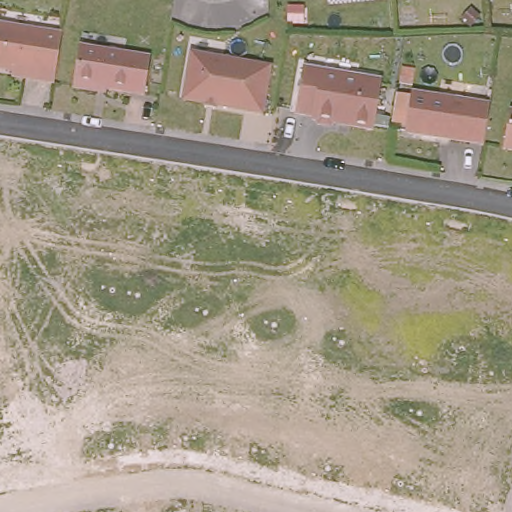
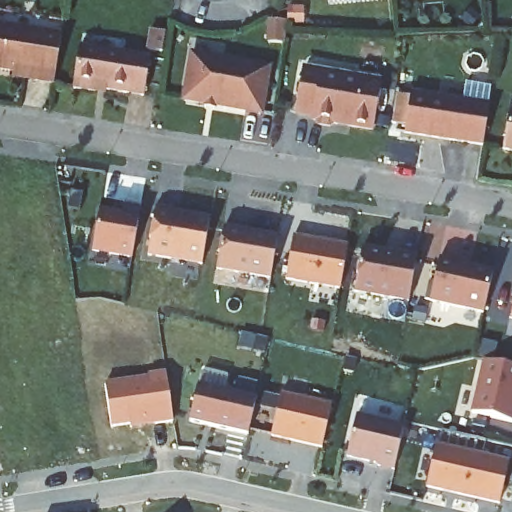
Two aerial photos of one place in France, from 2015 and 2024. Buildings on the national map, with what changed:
unchanged [(40,75),(41,70),(0,64),(0,20),(67,30),(59,78),(40,75)]
unchanged [(96,87),(96,91),(74,88),(81,46),(150,57),(144,95),(96,87)]
unchanged [(269,69),(261,113),(185,100),(192,55),(269,69)]
unchanged [(372,128),(349,125),(350,120),(339,118),(338,123),(334,122),(331,125),(319,123),(316,120),(314,119),(315,116),(298,113),(306,70),(379,80),(372,128)]
unchanged [(410,127),(416,87),(495,100),(488,140),(454,134),(444,133),(410,127)]
unchanged [(510,111),(512,112),(512,151),(504,150),(510,111)]
new [(100,206),(122,210),(125,197),(141,200),(133,253),(93,246),(100,206)]
new [(156,204),(173,207),(173,210),(209,216),(202,261),(148,252),(156,204)]
new [(223,226),(277,235),(271,274),(217,264),(223,226)]
new [(293,233),(347,242),(340,284),(286,275),(293,233)]
new [(363,246),(386,250),(385,253),(417,258),(410,298),(356,288),(363,246)]
new [(440,257),(493,269),(484,311),(430,299),(440,257)]
new [(512,307),(512,319),(510,318),(512,307)]
new [(512,365),(512,417),(512,419),(471,410),(483,358),(512,365)]
new [(105,383),(166,374),(172,419),(163,421),(163,424),(159,425),(158,421),(147,423),(148,427),(112,432),(105,383)]
new [(198,381),(256,395),(248,431),(189,418),(198,381)]
unchanged [(281,390),(332,401),(322,443),(272,431),(281,390)]
new [(356,412),(404,423),(394,465),(378,461),(379,459),(347,452),(356,412)]
new [(436,441),(509,458),(499,500),(426,483),(436,441)]

